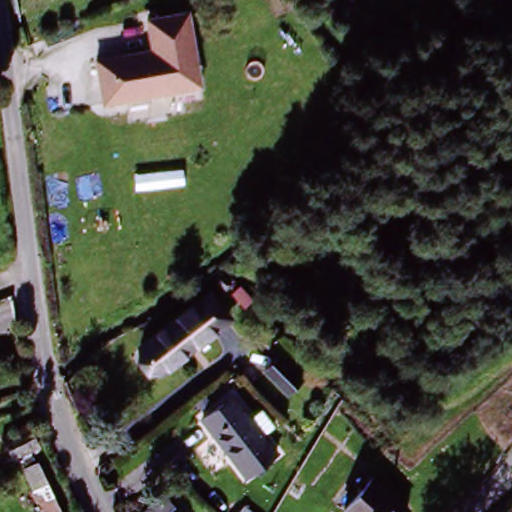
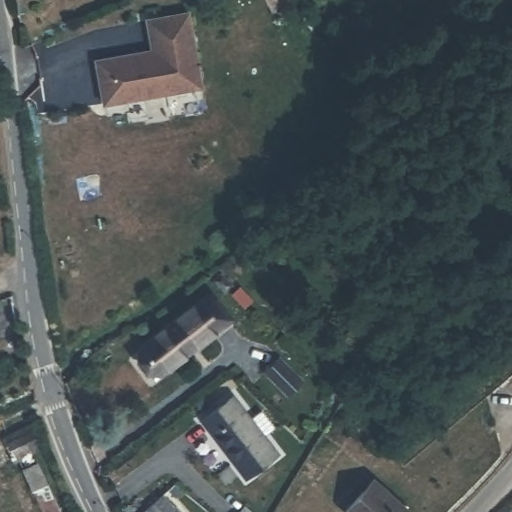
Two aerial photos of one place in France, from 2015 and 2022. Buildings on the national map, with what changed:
unchanged [(193,14),(206,91),(105,107),(96,59),(152,47),(148,17),(193,14)]
unchanged [(231,290),(223,297),(217,290),(213,286),(220,278),(231,290)]
unchanged [(144,353),(208,296),(226,316),(161,373),(144,353)]
unchanged [(273,390),(251,372),(264,356),(286,375),(273,390)]
unchanged [(248,478),(204,415),(237,393),(282,456),(248,478)]
unchanged [(66,512),(35,512),(0,443),(0,429),(26,416),(27,415),(29,418),(45,451),(37,455),(66,512)]
unchanged [(346,503),(370,481),(399,512),(354,512),(346,503)]
unchanged [(152,498),(168,512),(142,512),(152,498)]

